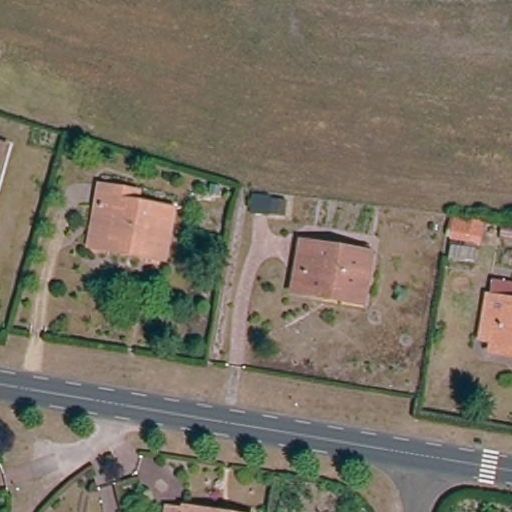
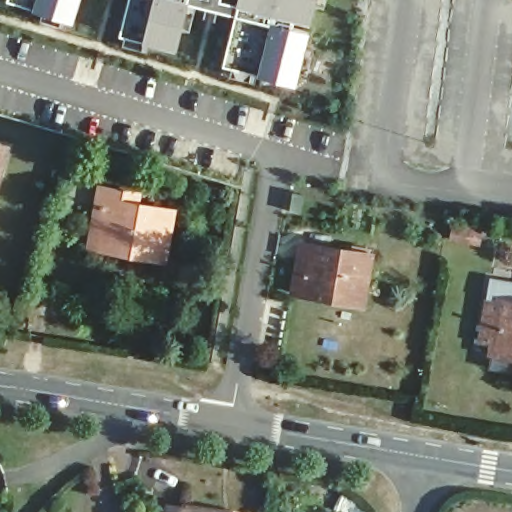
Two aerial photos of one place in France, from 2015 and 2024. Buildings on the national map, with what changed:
new [(74,21),(13,0),(80,0),(74,21)]
new [(225,64),(237,13),(190,0),(177,49),(143,41),(122,34),(130,0),(221,0),(237,4),(238,0),(317,0),(296,84),(225,64)]
unchanged [(0,167),(0,152),(4,153),(0,167)]
unchanged [(98,209),(102,192),(129,196),(137,198),(136,209),(172,215),(164,265),(141,261),(90,251),(98,209)]
unchanged [(491,240),(463,237),(466,217),(492,221),(491,240)]
unchanged [(305,299),(293,297),(297,277),(303,248),(372,260),(362,310),(342,306),(322,302),(305,299)]
unchanged [(500,351),(489,349),(497,306),(499,295),(512,298),(512,366),(497,363),(499,355),(500,351)]

